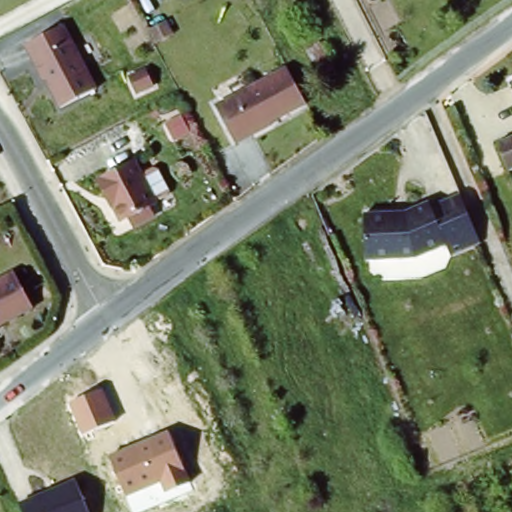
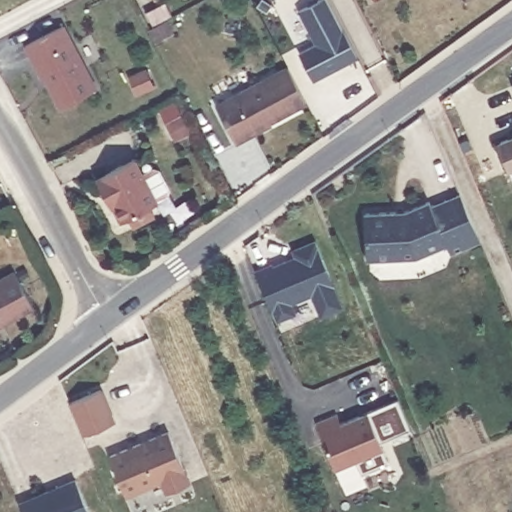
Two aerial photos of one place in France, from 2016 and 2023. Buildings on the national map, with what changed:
new [(317,38),(315,40),(300,11),(320,0),(328,0),(357,57),(313,81),(300,54),(320,43),(317,38)]
unchanged [(27,42),(63,22),(100,91),(65,109),(47,72),(44,74),(27,42)]
unchanged [(133,76),(142,72),(148,68),(157,83),(150,87),(142,91),(133,76)]
unchanged [(271,127),(272,129),(237,147),(217,109),(288,72),(307,107),(271,127)]
unchanged [(497,139),(512,133),(512,166),(510,167),(497,139)]
unchanged [(105,202),(102,204),(92,187),(129,167),(152,212),(118,230),(105,202)]
unchanged [(481,241),(451,253),(447,242),(415,256),(370,257),(369,210),(405,209),(429,199),(431,204),(460,191),(481,241)]
new [(272,263),(275,265),(295,257),(292,248),(315,240),(343,307),(320,316),(312,295),(292,302),(295,312),(277,320),(255,272),(272,263)]
unchanged [(10,277),(28,311),(0,325),(0,282),(10,277)]
unchanged [(100,390),(115,420),(84,436),(70,405),(100,390)]
new [(337,415),(341,425),(398,401),(411,431),(381,443),(390,463),(362,475),(356,461),(335,470),(317,424),(337,415)]
unchanged [(169,431),(192,482),(167,494),(161,482),(127,497),(110,456),(169,431)]
unchanged [(77,482),(88,512),(26,512),(22,503),(77,482)]

